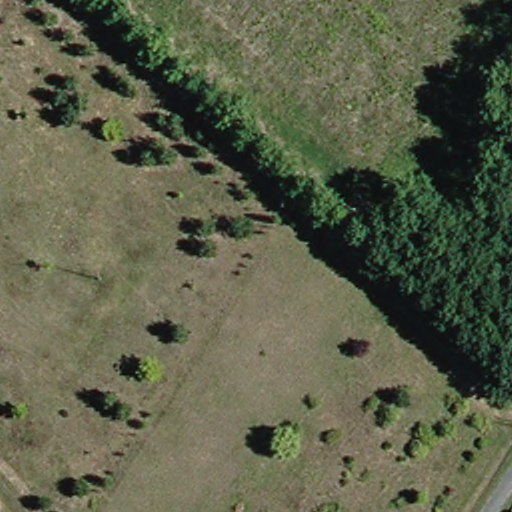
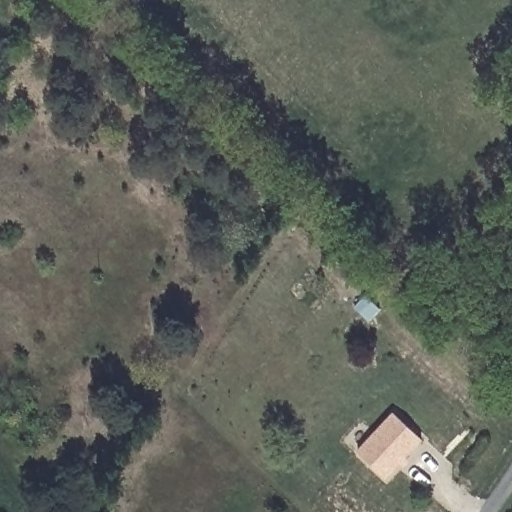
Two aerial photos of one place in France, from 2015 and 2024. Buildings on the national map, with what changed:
new [(383,482),(356,457),(391,418),(420,444),(383,482)]

